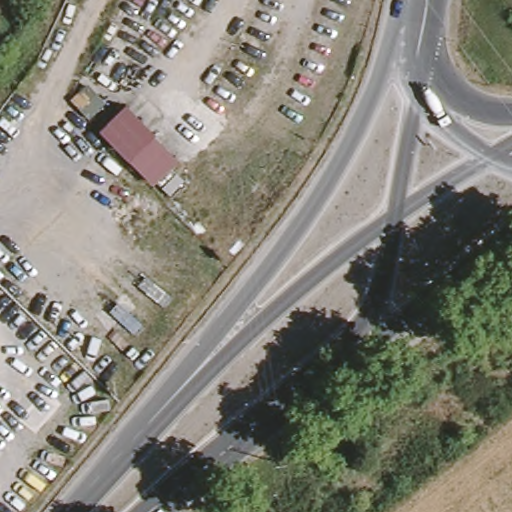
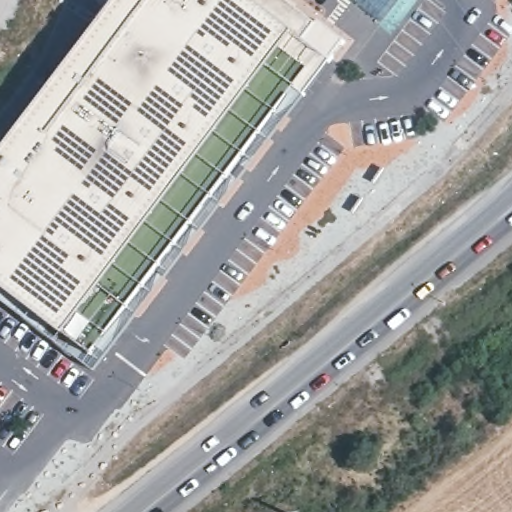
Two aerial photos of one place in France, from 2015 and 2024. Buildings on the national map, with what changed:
new [(344,43),(305,96),(294,88),(91,355),(63,334),(0,286),(0,156),(118,0),(283,0),(316,25),(319,23),(344,43)]
demolished [(151,134),(123,158),(97,132),(121,108),(151,134)]

